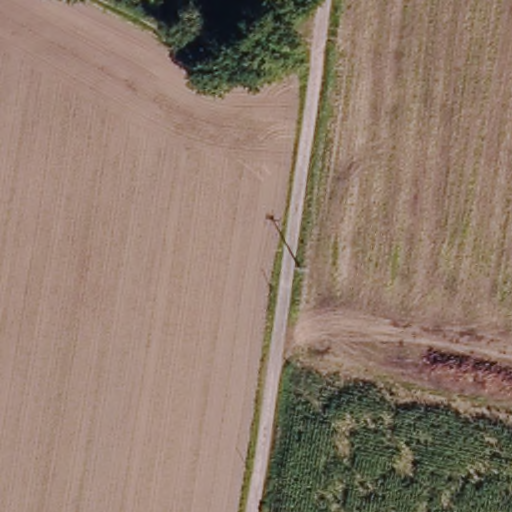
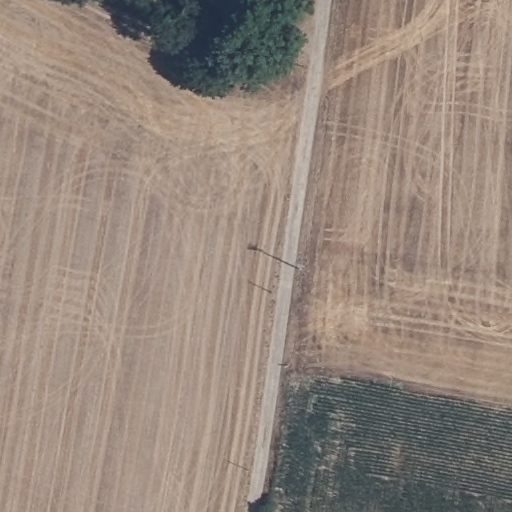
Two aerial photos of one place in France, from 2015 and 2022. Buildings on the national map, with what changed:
[]

